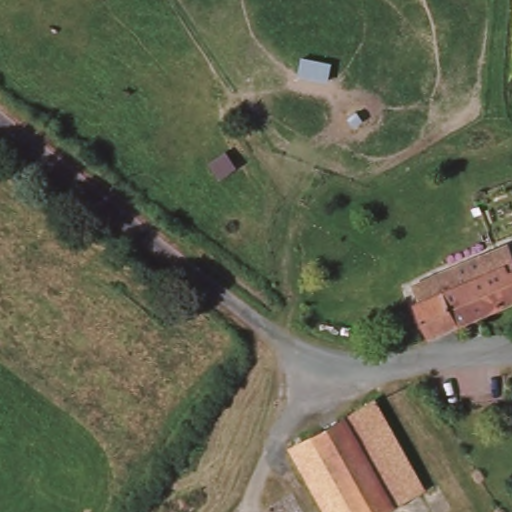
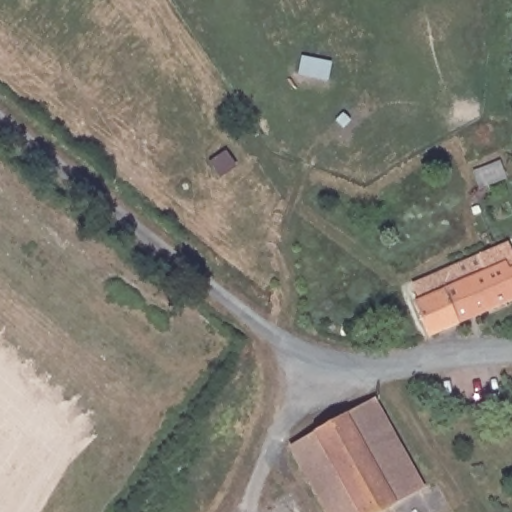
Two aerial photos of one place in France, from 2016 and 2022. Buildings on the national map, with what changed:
unchanged [(512,299),(419,338),(404,305),(431,293),(423,277),(444,269),(468,258),(470,262),(508,244),(511,250),(512,252),(512,299)]
unchanged [(305,466),(302,468),(289,445),(378,392),(426,485),(381,512),(332,512),(305,466)]

